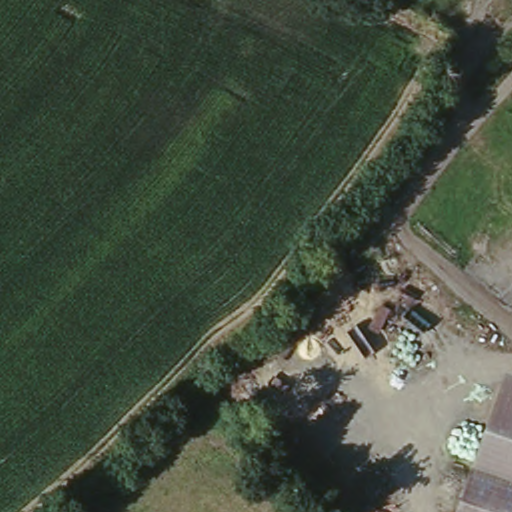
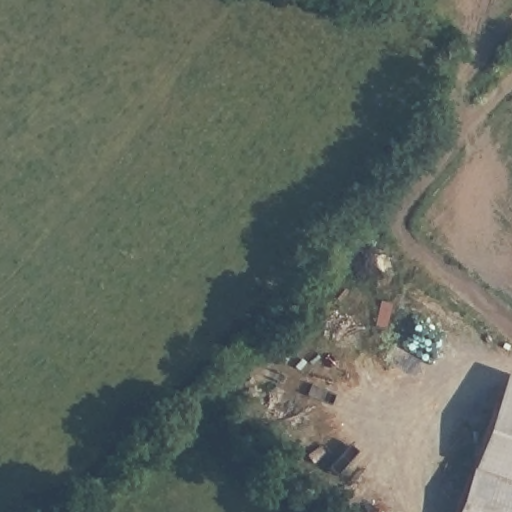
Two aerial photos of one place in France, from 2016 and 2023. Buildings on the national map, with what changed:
unchanged [(512,382),(512,512),(462,512),(506,380),(512,382)]

